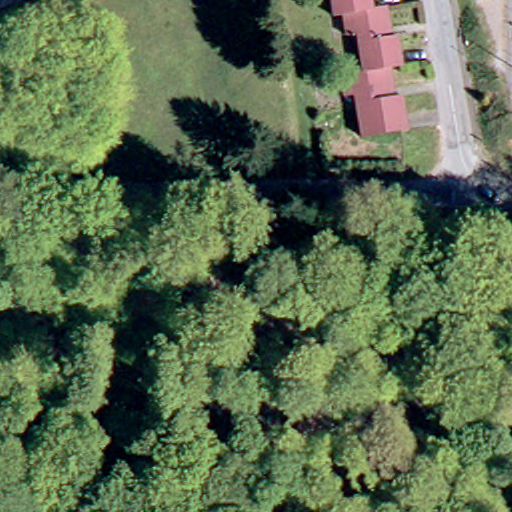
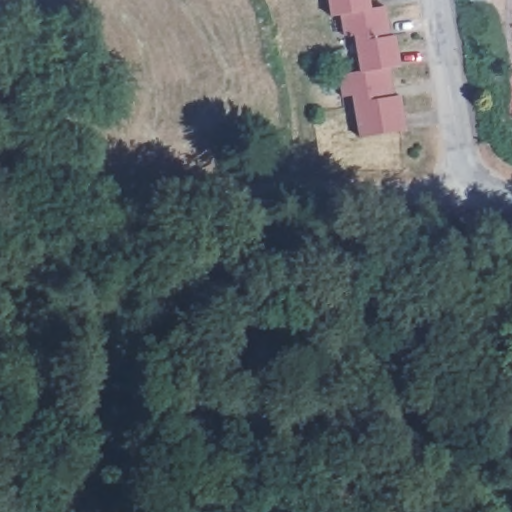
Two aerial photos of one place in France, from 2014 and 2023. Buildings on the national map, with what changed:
unchanged [(397,67),(400,91),(394,91),(393,100),(412,98),(417,133),(369,140),(363,99),(348,99),(347,78),(365,76),(360,37),(350,38),(346,17),(332,19),(329,0),(373,0),(375,9),(390,8),(393,32),(390,31),(388,34),(388,37),(402,35),(407,66),(397,67)]

